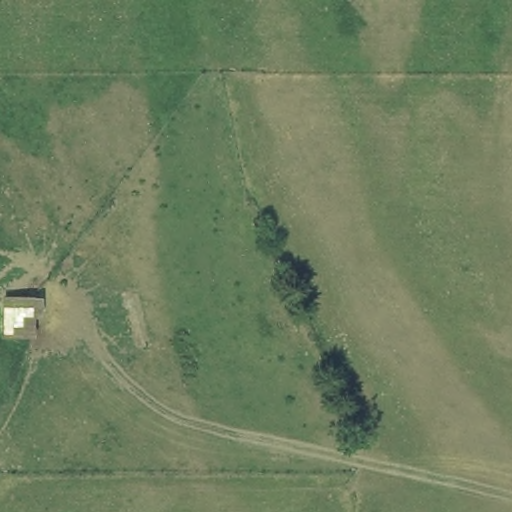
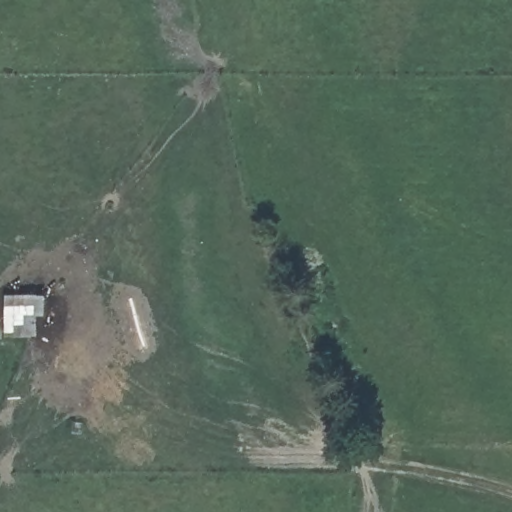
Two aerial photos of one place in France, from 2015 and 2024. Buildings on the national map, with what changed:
unchanged [(5,343),(4,297),(32,299),(33,337),(5,343)]

